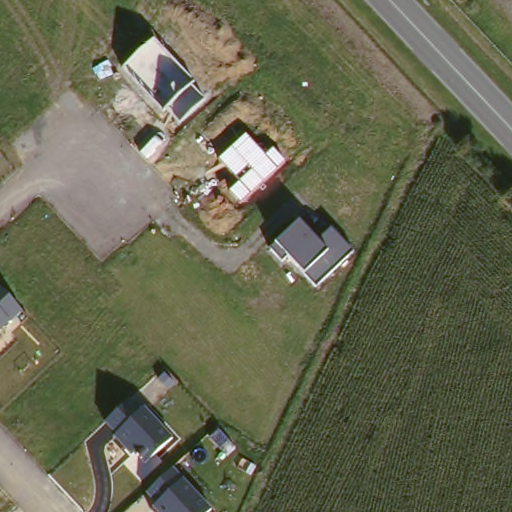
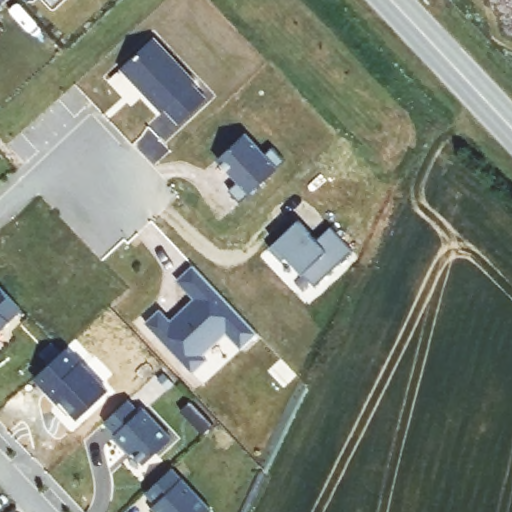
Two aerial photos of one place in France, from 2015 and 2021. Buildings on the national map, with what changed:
unchanged [(2,7),(0,9),(0,6),(2,7)]
unchanged [(168,107),(163,111),(123,69),(155,40),(196,82),(193,87),(206,102),(182,122),(168,107)]
unchanged [(230,191),(239,182),(219,158),(248,134),(266,155),(274,149),(286,162),(241,203),(230,191)]
unchanged [(304,274),(288,258),(282,262),(271,249),(277,242),(300,221),(317,240),(332,227),(355,252),(316,287),(304,274)]
new [(195,299),(177,281),(193,266),(257,333),(241,348),(224,331),(199,353),(206,361),(192,373),(146,324),(160,311),(170,322),(180,313),(195,299)]
unchanged [(23,311),(0,332),(0,286),(23,311)]
new [(64,355),(77,369),(80,367),(107,396),(78,423),(61,406),(58,407),(34,382),(64,355)]
unchanged [(135,453),(133,455),(115,437),(117,434),(106,422),(132,398),(141,408),(145,405),(174,438),(144,463),(135,453)]
unchanged [(153,508),(157,505),(147,492),(174,467),(213,511),(211,512),(157,512),(153,508)]

